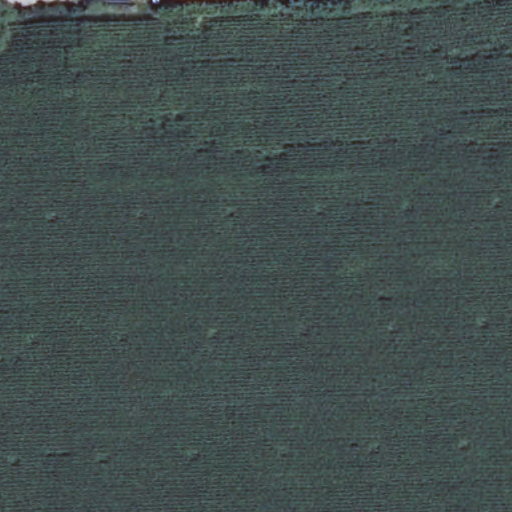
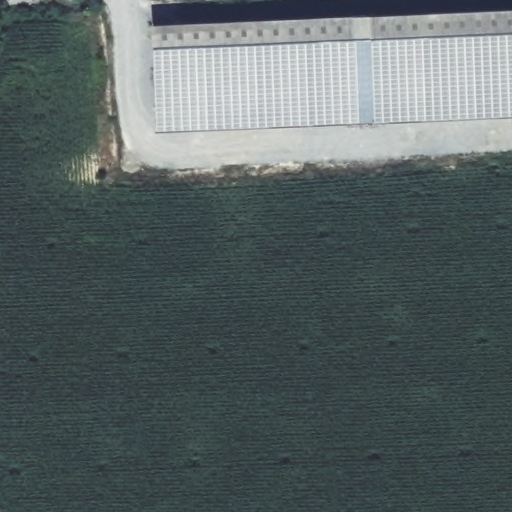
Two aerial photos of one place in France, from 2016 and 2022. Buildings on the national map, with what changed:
new [(162,0),(152,1),(152,0),(162,0)]
demolished [(227,0),(172,4),(172,0),(227,0)]
new [(150,25),(512,7),(512,115),(156,131),(150,25)]

